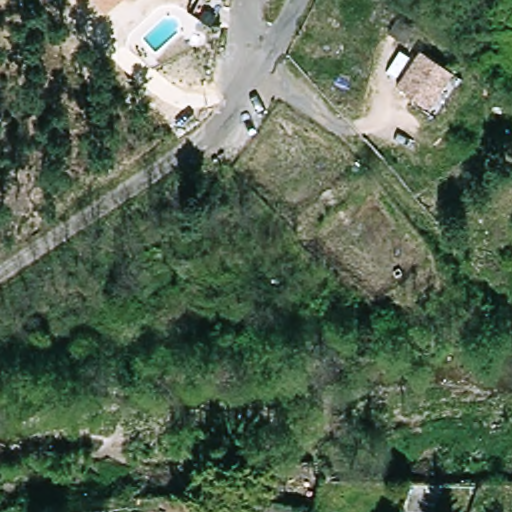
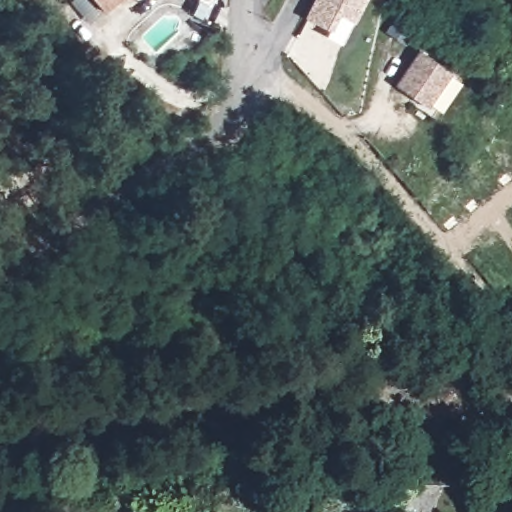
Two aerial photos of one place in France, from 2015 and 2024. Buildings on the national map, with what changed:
unchanged [(89,0),(119,0),(102,15),(89,0)]
new [(304,18),(314,0),(367,0),(353,24),(341,45),(326,37),(329,31),(304,18)]
unchanged [(449,71),(424,105),(394,83),(419,49),(449,71)]

